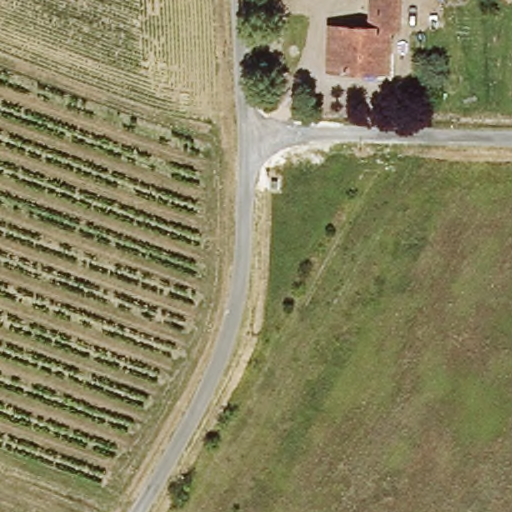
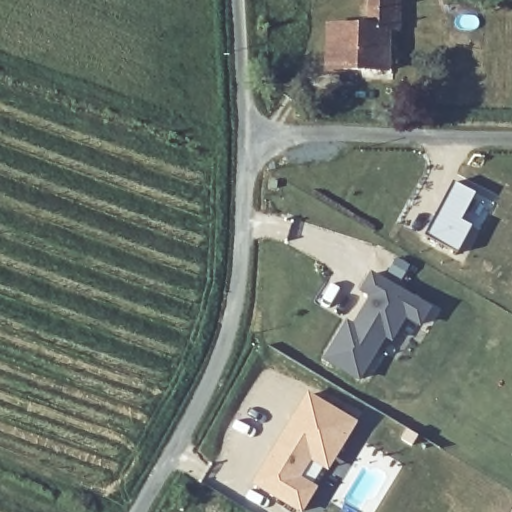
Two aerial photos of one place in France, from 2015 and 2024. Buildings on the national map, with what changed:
unchanged [(375,27),(375,0),(402,0),(403,26),(393,27),(393,56),(385,57),(384,71),(332,71),(332,27),(375,27)]
new [(355,325),(371,297),(360,291),(372,271),(433,309),(423,328),(407,320),(393,343),(387,340),(363,383),(323,360),(348,321),(355,325)]
new [(301,478),(318,488),(304,512),(299,512),(254,484),(308,392),(359,423),(328,471),(311,462),(301,478)]

